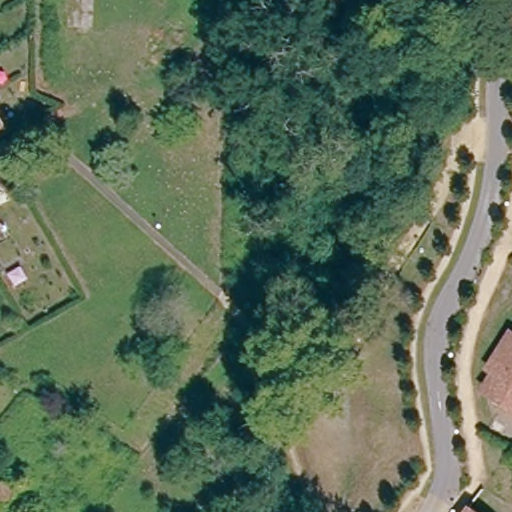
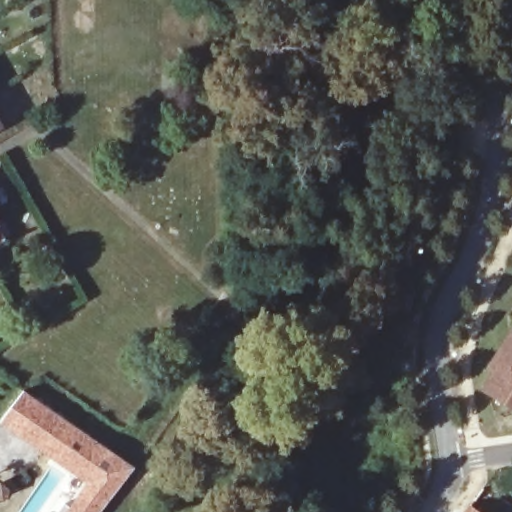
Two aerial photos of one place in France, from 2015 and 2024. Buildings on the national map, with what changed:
unchanged [(1,125),(0,125),(0,124),(1,125)]
unchanged [(494,371),(488,368),(511,330),(512,331),(512,406),(483,389),(494,371)]
new [(24,389),(98,440),(135,467),(100,512),(62,512),(82,484),(0,425),(0,422),(24,389)]
unchanged [(9,490),(7,499),(0,499),(0,483),(9,490)]
unchanged [(480,512),(454,512),(463,499),(480,512)]

